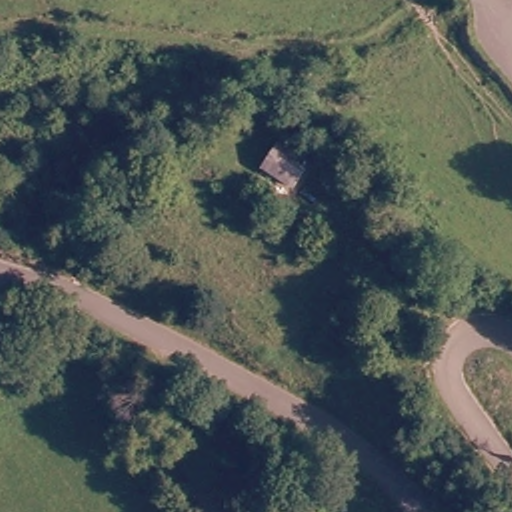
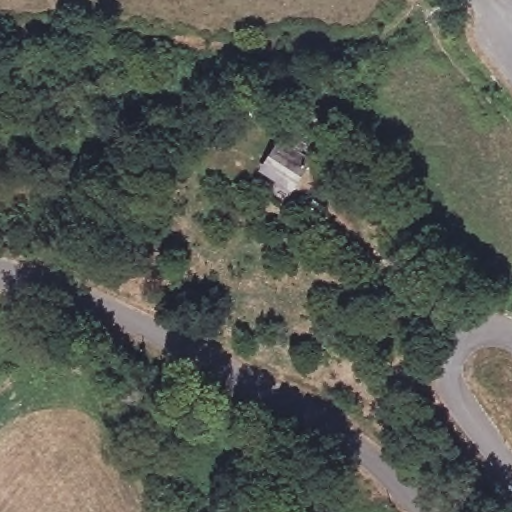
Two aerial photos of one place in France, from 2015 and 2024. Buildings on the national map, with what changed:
unchanged [(300,164),(308,172),(288,194),(261,173),(282,148),(285,151),(297,136),(312,150),(300,164)]

